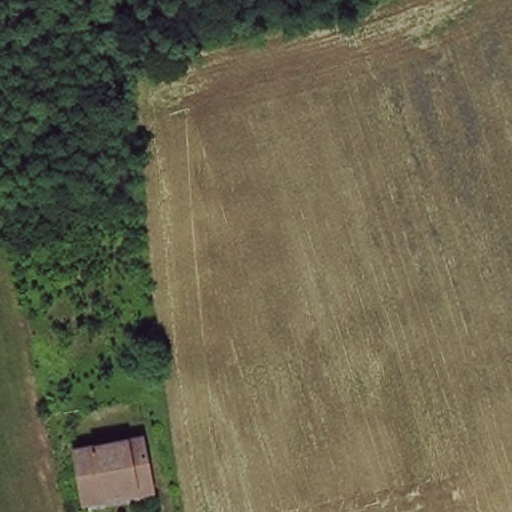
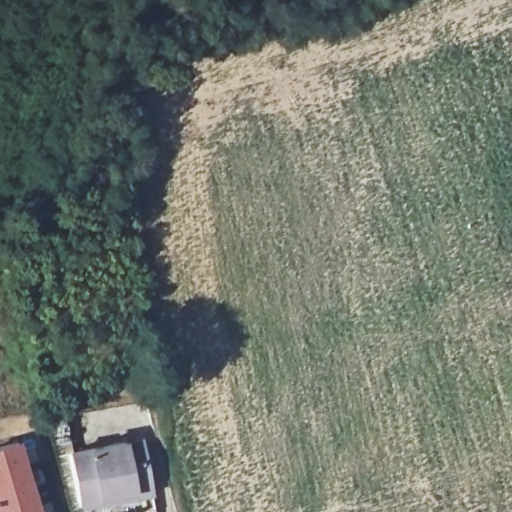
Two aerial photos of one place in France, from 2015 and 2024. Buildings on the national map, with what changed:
new [(42,512),(0,512),(0,445),(20,439),(42,512)]
unchanged [(135,446),(149,502),(109,512),(85,512),(71,461),(135,446)]

